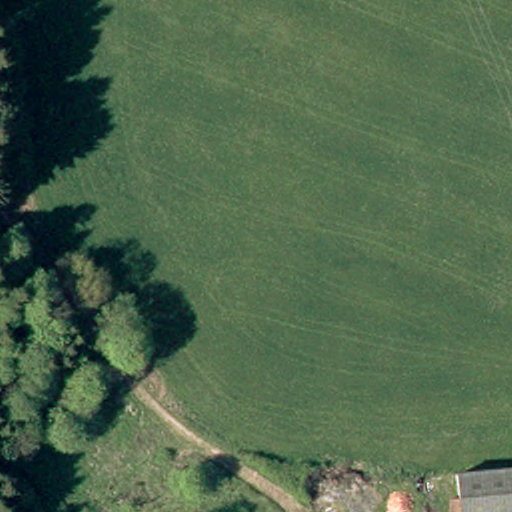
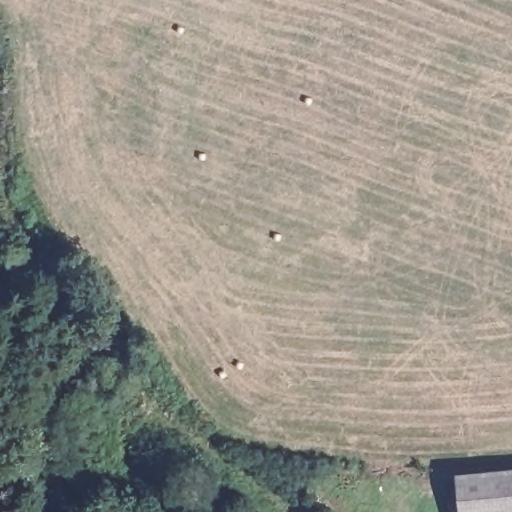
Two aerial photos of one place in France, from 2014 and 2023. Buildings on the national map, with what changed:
unchanged [(512,512),(459,512),(454,472),(512,465),(512,512)]

